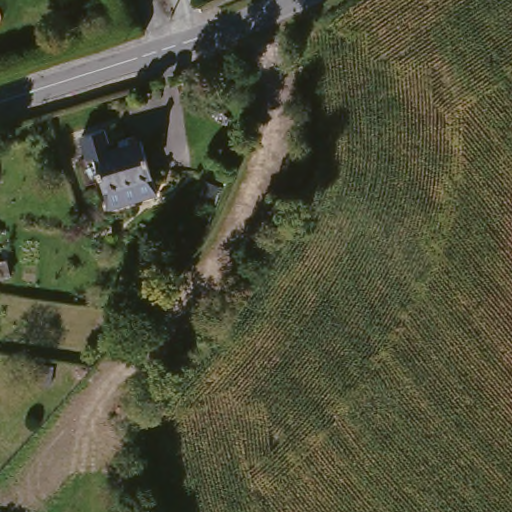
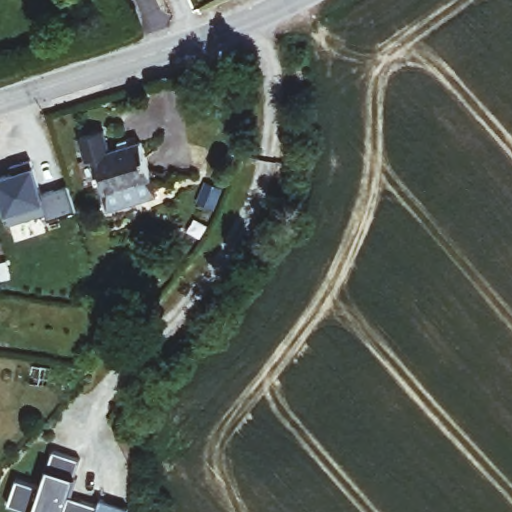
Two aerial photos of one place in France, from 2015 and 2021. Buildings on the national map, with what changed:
unchanged [(95,155),(143,140),(153,175),(159,192),(110,207),(105,190),(95,155)]
new [(12,173),(11,166),(31,160),(40,190),(46,193),(67,186),(76,213),(47,221),(45,213),(9,224),(0,195),(0,177),(12,173)]
unchanged [(223,187),(215,207),(201,201),(210,182),(223,187)]
unchanged [(49,386),(31,384),(34,366),(51,368),(49,386)]
new [(70,497),(97,505),(100,499),(129,507),(127,512),(22,512),(7,507),(16,480),(40,487),(52,450),(82,460),(70,497)]

